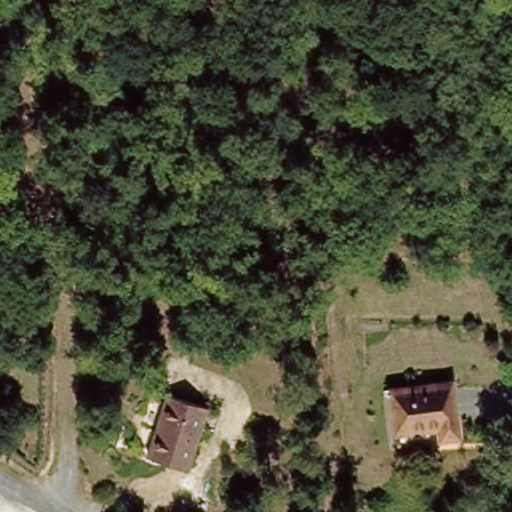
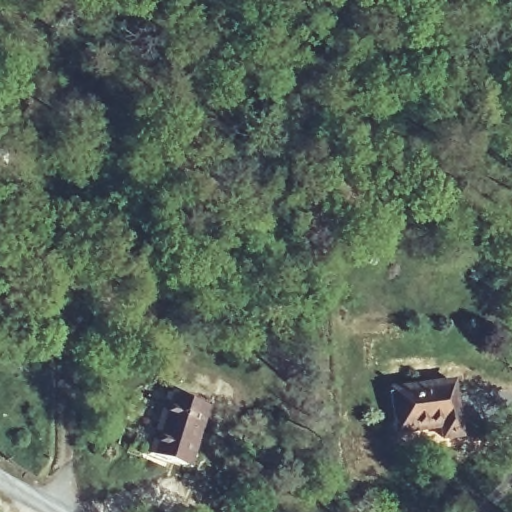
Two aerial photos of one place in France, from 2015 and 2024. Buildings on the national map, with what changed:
unchanged [(435,427),(391,427),(390,386),(454,385),(455,440),(436,440),(435,427)]
unchanged [(144,453),(165,392),(207,407),(185,467),(144,453)]

